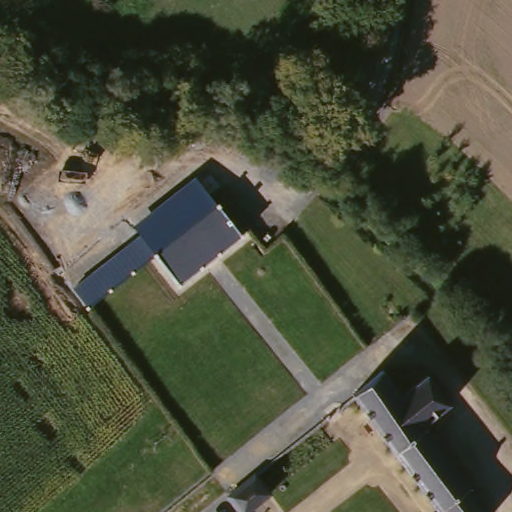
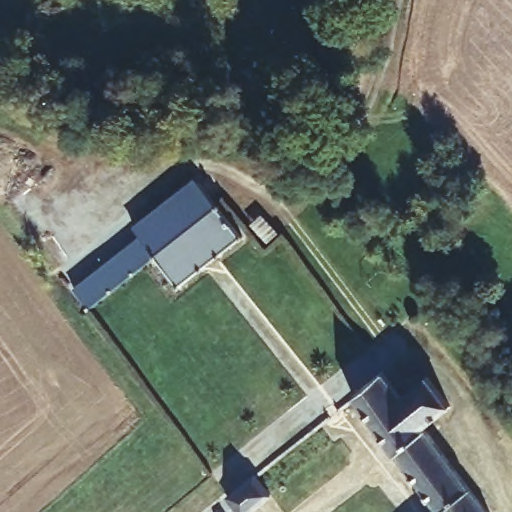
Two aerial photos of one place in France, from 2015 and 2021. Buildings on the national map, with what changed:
unchanged [(178,287),(152,256),(90,308),(73,288),(140,234),(134,227),(193,179),(241,237),(178,287)]
unchanged [(348,392),(369,377),(378,369),(397,395),(426,374),(430,380),(449,405),(421,425),(435,444),(486,512),(435,512),(348,392)]
unchanged [(252,475),(270,499),(253,512),(236,512),(227,500),(224,496),(252,475)]

